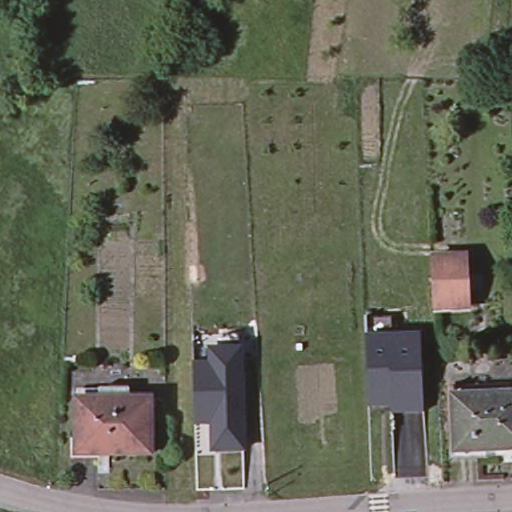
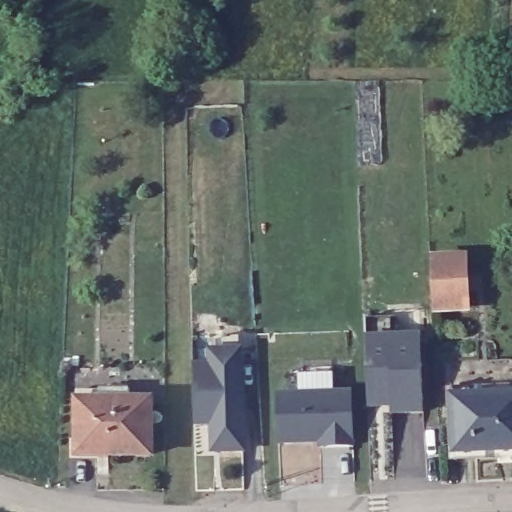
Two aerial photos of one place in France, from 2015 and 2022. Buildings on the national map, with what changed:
unchanged [(432,257),(466,256),(467,306),(434,307),(432,257)]
unchanged [(368,337),(368,320),(393,319),(394,332),(422,333),(424,413),(394,416),(391,405),(369,410),(368,337)]
unchanged [(195,423),(193,343),(193,340),(219,339),(218,324),(239,323),(243,448),(213,450),(196,451),(195,423)]
new [(275,393),(353,390),(354,446),(318,448),(318,443),(277,445),(275,393)]
unchanged [(507,392),(512,392),(512,446),(511,447),(479,448),(475,395),(507,392)]
unchanged [(73,395),(104,397),(103,452),(70,449),(73,395)]
unchanged [(447,397),(475,395),(479,448),(450,450),(447,397)]
unchanged [(104,397),(146,399),(143,455),(103,452),(104,397)]

